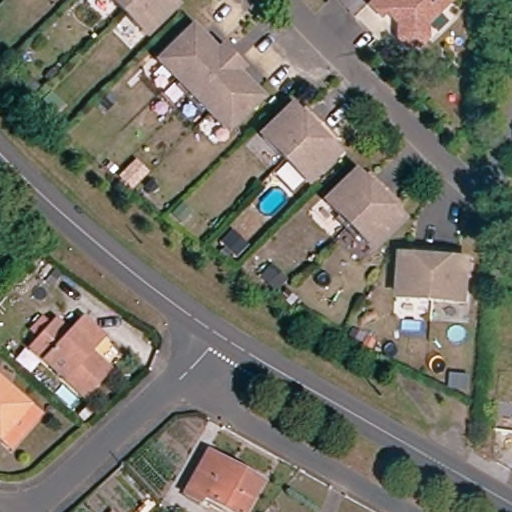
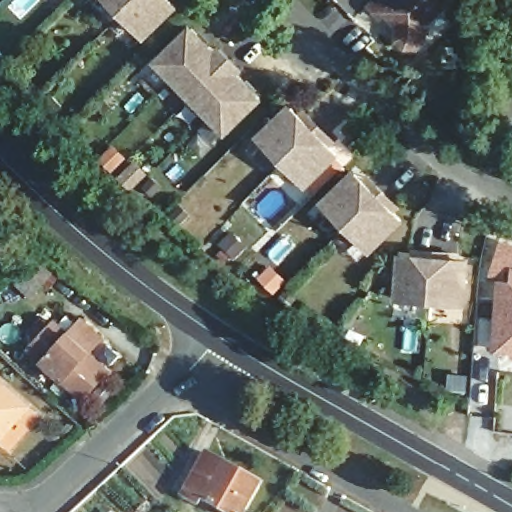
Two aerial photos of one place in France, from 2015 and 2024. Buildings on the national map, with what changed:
unchanged [(144,36),(109,0),(170,0),(176,6),(144,36)]
unchanged [(426,35),(417,44),(406,42),(398,35),(400,20),(387,7),(382,12),(370,0),(447,0),(427,20),(426,35)]
unchanged [(176,87),(179,84),(157,62),(192,28),(216,52),(221,47),(244,71),(239,75),(262,100),(228,134),(206,112),(202,115),(176,87)]
unchanged [(26,84),(32,77),(41,86),(35,92),(26,84)]
unchanged [(330,139),(326,142),(338,155),(307,185),(262,139),(293,109),(305,121),(309,117),(330,139)]
unchanged [(123,178),(138,163),(148,173),(132,188),(123,178)]
unchanged [(357,174),(369,186),(373,182),(394,204),(390,208),(402,220),(371,250),(326,205),(357,174)]
unchanged [(181,207),(190,216),(182,225),(172,215),(181,207)]
unchanged [(222,245),(232,235),(246,250),(236,260),(222,245)]
demolished [(497,240),(512,245),(512,259),(507,258),(497,290),(484,286),(497,240)]
new [(512,359),(512,353),(493,352),(498,280),(491,275),(502,242),(512,245),(512,359)]
unchanged [(420,257),(421,252),(451,254),(450,260),(467,261),(463,305),(400,300),(403,256),(420,257)]
unchanged [(262,279),(272,270),(286,283),(276,293),(262,279)]
unchanged [(291,306),(281,300),(286,291),(297,298),(291,306)]
unchanged [(31,354),(57,325),(72,338),(85,323),(106,342),(92,357),(112,375),(86,405),(31,354)]
unchanged [(360,345),(348,339),(352,332),(363,337),(360,345)]
unchanged [(11,452),(0,443),(0,384),(40,420),(11,452)]
unchanged [(266,487),(253,512),(228,512),(210,502),(207,507),(191,498),(212,458),(266,487)]

